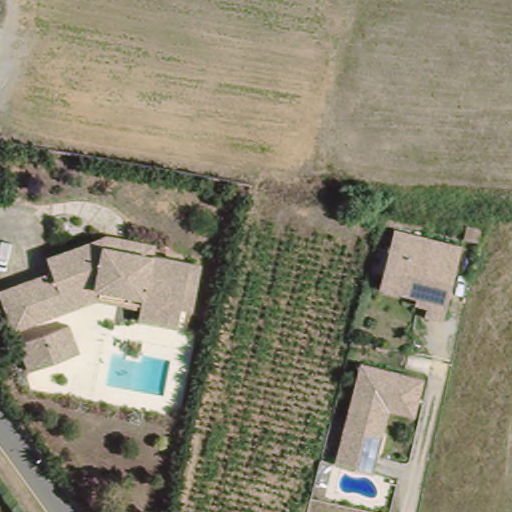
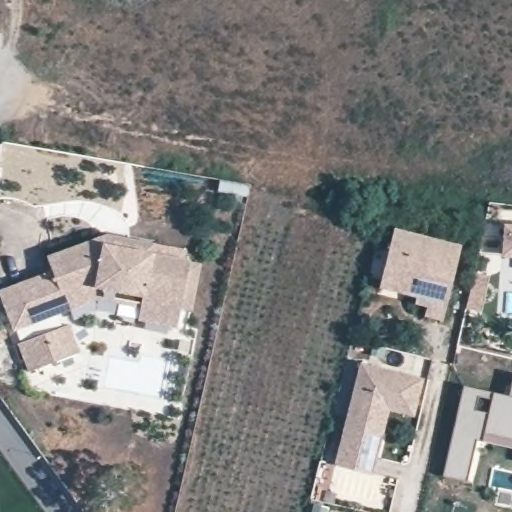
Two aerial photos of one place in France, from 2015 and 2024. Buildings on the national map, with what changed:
new [(512,225),(512,249),(503,248),(505,224),(512,225)]
unchanged [(380,275),(390,233),(457,250),(439,324),(421,320),(425,305),(398,297),(376,291),(380,275)]
unchanged [(12,330),(0,302),(0,289),(48,268),(44,257),(100,235),(104,243),(190,263),(176,328),(135,320),(138,307),(94,296),(12,330)]
unchanged [(20,346),(62,329),(73,356),(32,374),(20,346)]
unchanged [(357,367),(419,382),(409,419),(384,413),(368,478),(331,469),(357,367)]
new [(471,440),(462,482),(441,477),(460,386),(505,395),(510,373),(512,373),(512,448),(477,441),(471,440)]

